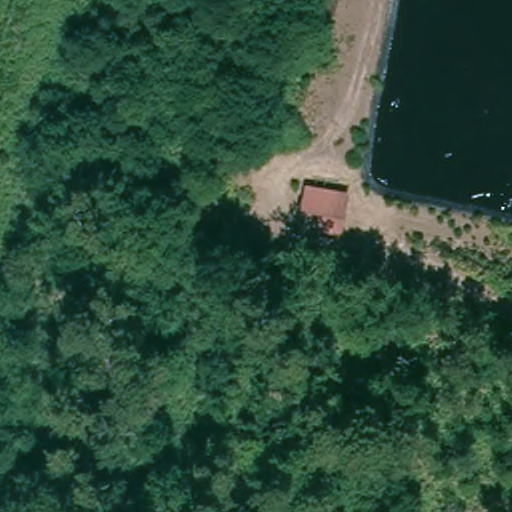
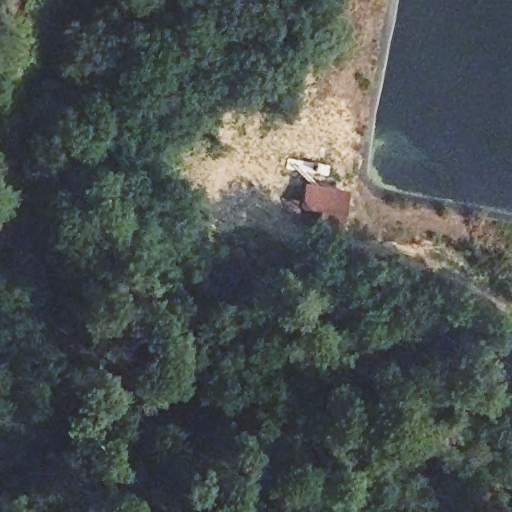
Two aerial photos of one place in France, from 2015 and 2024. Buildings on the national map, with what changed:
unchanged [(339,237),(309,232),(312,209),(299,207),(304,181),(349,188),(339,237)]

